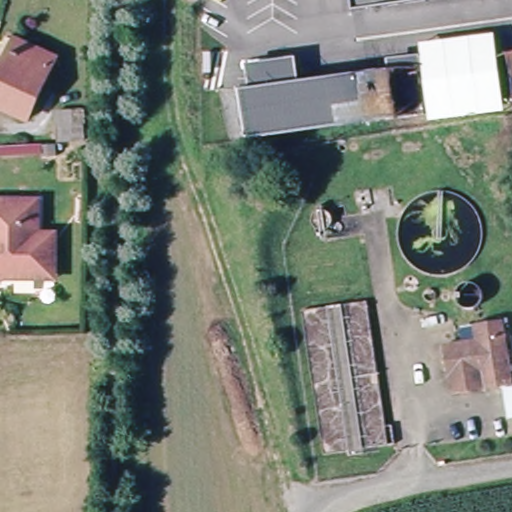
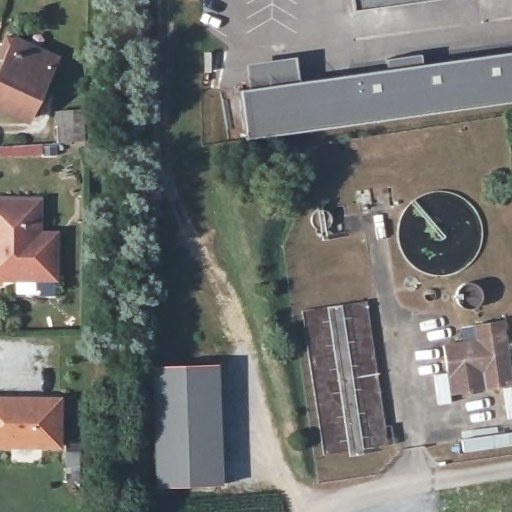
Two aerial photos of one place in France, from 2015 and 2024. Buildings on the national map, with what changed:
unchanged [(353,10),(352,0),(425,0),(353,10)]
unchanged [(38,117),(0,101),(0,94),(18,58),(6,51),(15,31),(65,55),(38,117)]
unchanged [(296,58),(299,80),(512,51),(512,101),(245,140),(237,89),(249,88),(245,65),(296,58)]
unchanged [(86,137),(59,136),(60,104),(85,105),(86,137)]
unchanged [(367,195),(372,193),(377,195),(380,200),(378,206),(372,210),(366,210),(364,206),(363,199),(367,195)]
unchanged [(56,284),(37,282),(0,282),(0,204),(38,205),(38,237),(57,237),(56,284)]
unchanged [(328,215),(333,215),(336,220),(337,225),(335,231),(330,233),(327,234),(320,233),(318,225),(318,220),(322,215),(328,215)]
unchanged [(472,285),(478,288),(482,300),(476,310),(467,311),(461,310),(458,306),(455,300),(455,294),(456,289),(462,285),(472,285)]
unchanged [(512,364),(512,391),(454,402),(443,352),(507,341),(512,364)]
new [(152,490),(149,366),(219,363),(222,485),(152,490)]
new [(0,448),(0,397),(63,397),(62,448),(0,448)]

